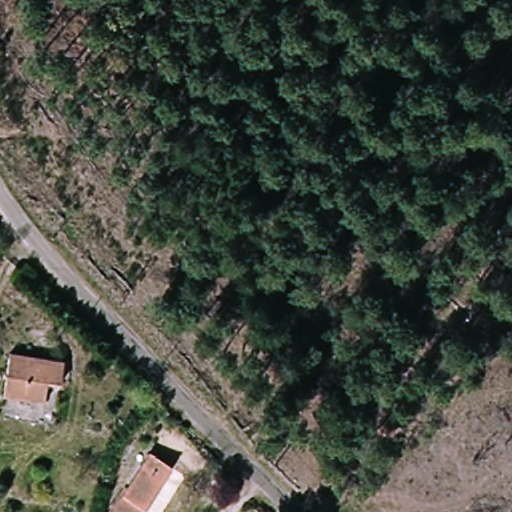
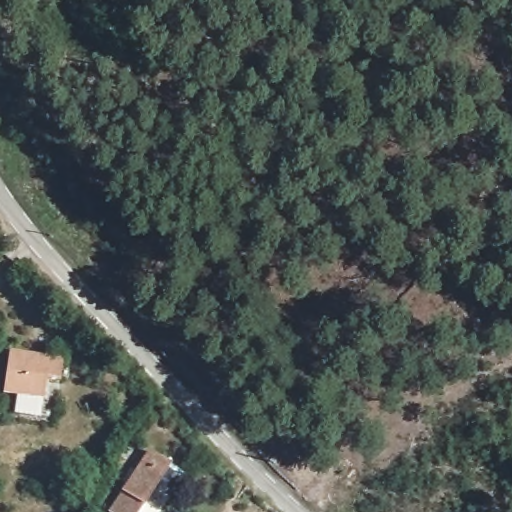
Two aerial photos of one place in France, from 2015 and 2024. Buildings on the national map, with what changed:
unchanged [(9,351),(68,362),(64,384),(53,383),(50,400),(2,392),(9,351)]
unchanged [(142,452),(172,467),(149,512),(112,512),(142,452)]
unchanged [(63,508),(70,512),(61,512),(63,508)]

